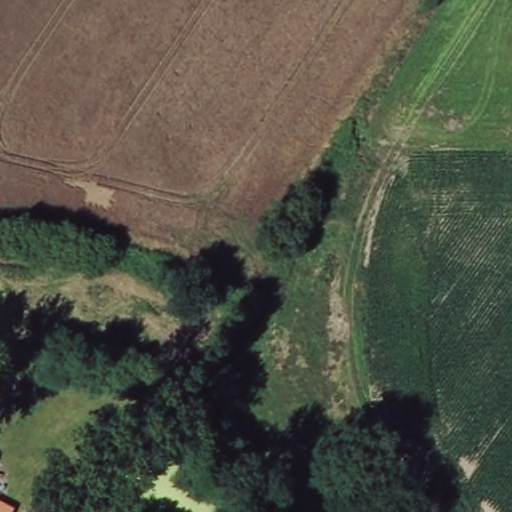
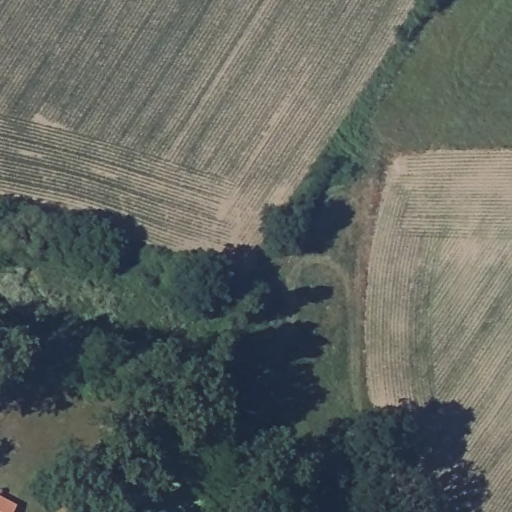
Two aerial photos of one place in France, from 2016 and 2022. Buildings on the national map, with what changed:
[]

